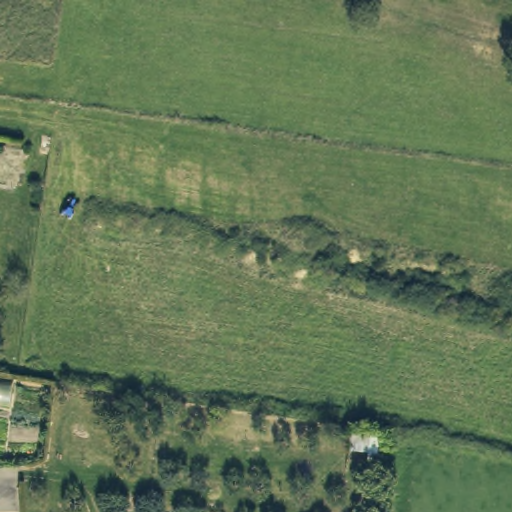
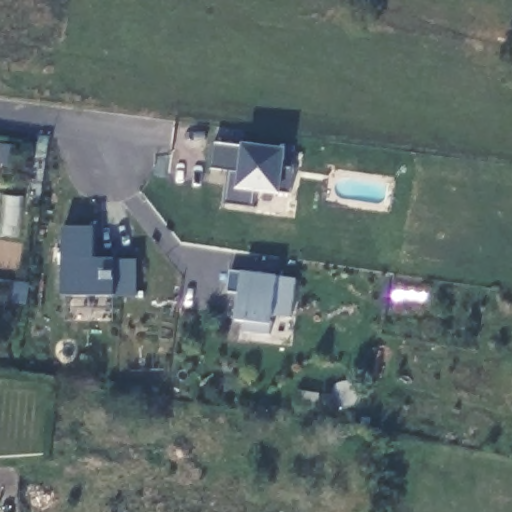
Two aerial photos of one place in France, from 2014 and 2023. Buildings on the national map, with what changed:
new [(283,195),(257,192),(255,210),(226,205),(229,171),(212,170),(215,144),(243,146),(289,151),(286,168),(294,169),(290,196),(283,195)]
new [(116,297),(61,296),(62,228),(96,229),(97,260),(116,261),(139,261),(140,296),(116,297)]
new [(292,318),(274,317),(273,326),(272,335),(243,332),(245,322),(235,321),(238,295),(228,292),(231,272),(241,273),(277,278),(297,280),(292,318)]

